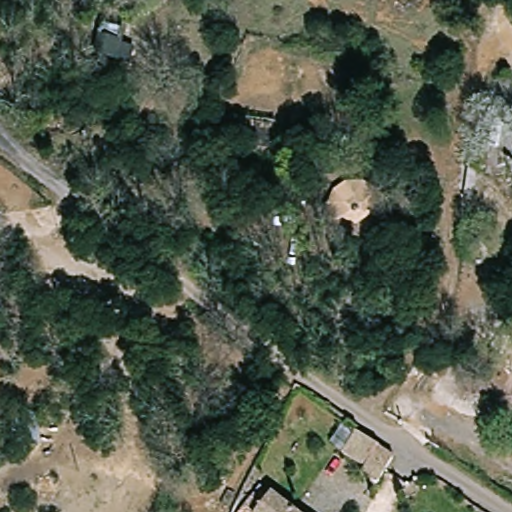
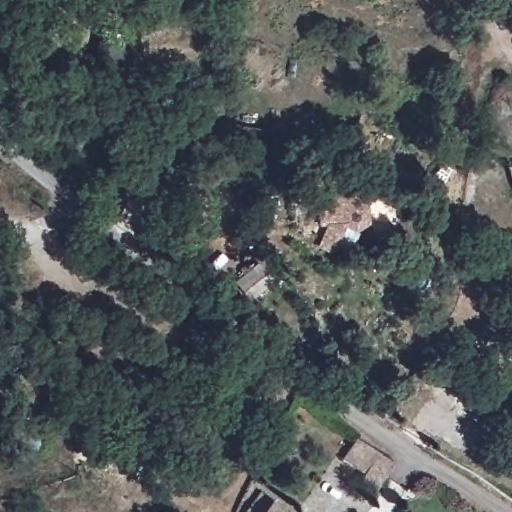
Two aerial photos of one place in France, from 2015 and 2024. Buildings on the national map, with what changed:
unchanged [(124,39),(120,55),(132,60),(127,76),(86,65),(96,30),(124,39)]
unchanged [(195,130),(221,127),(247,129),(273,132),(270,156),(269,156),(243,151),(216,150),(189,152),(188,131),(195,130)]
unchanged [(329,201),(337,194),(347,190),(358,189),(369,190),(374,194),(367,213),(367,224),(355,230),(341,224),(326,221),(321,221),(324,210),(329,201)]
unchanged [(396,465),(379,489),(362,478),(366,471),(344,457),(358,437),(396,465)]
unchanged [(256,490),(286,512),(257,512),(246,502),(256,490)]

